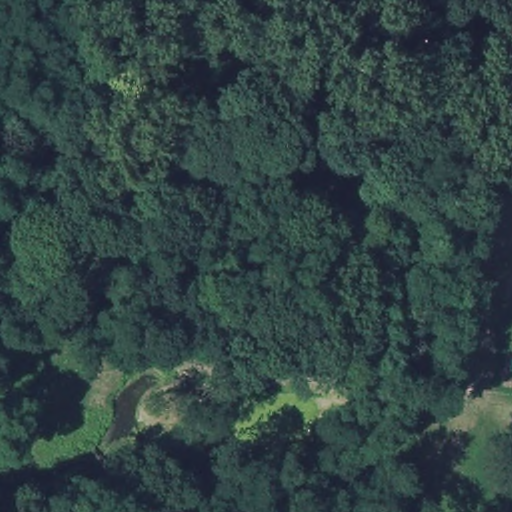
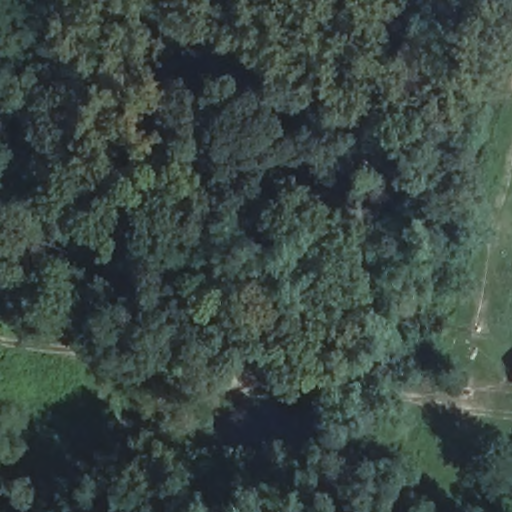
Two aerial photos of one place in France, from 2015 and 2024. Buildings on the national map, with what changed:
unchanged [(511,392),(512,367),(512,392),(511,392)]

